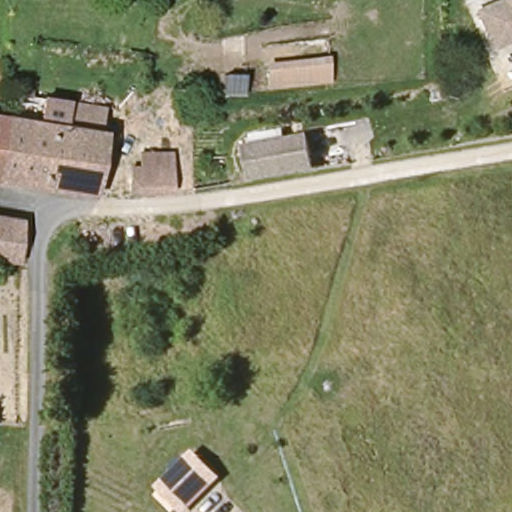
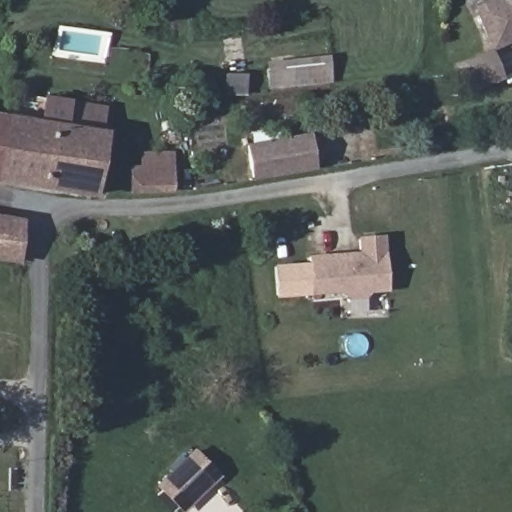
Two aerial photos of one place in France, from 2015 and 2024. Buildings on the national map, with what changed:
unchanged [(512,43),(498,49),(482,12),(509,0),(512,0),(512,43)]
new [(269,90),(267,63),(328,56),(331,83),(269,90)]
unchanged [(24,100),(47,104),(107,112),(100,200),(2,185),(10,121),(21,122),(24,100)]
unchanged [(2,185),(0,185),(0,120),(10,121),(2,185)]
unchanged [(311,137),(316,169),(257,180),(250,148),(311,137)]
unchanged [(133,191),(133,170),(139,170),(139,151),(167,151),(168,170),(168,191),(133,191)]
unchanged [(18,223),(16,248),(13,261),(2,260),(0,259),(0,221),(18,223)]
new [(358,236),(385,235),(389,292),(367,292),(354,303),(342,292),(311,295),(309,255),(358,251),(358,236)]
new [(311,295),(275,297),(272,264),(309,262),(311,295)]
unchanged [(163,488),(200,453),(219,476),(184,511),(163,488)]

